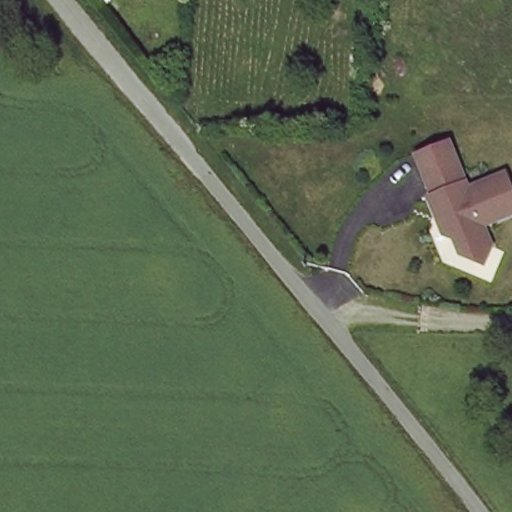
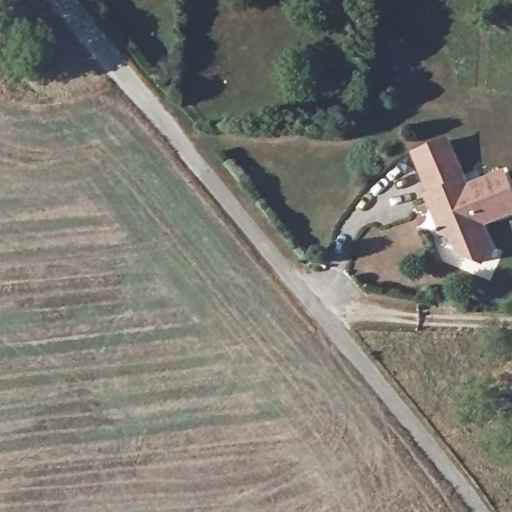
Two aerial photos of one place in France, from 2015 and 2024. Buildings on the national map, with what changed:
unchanged [(512,164),(512,207),(485,215),(492,238),(483,255),(459,244),(453,226),(445,219),(431,181),(436,180),(421,139),(456,127),(472,176),(512,164)]

